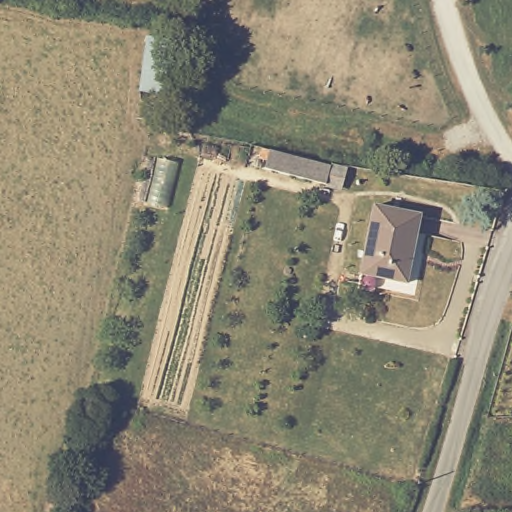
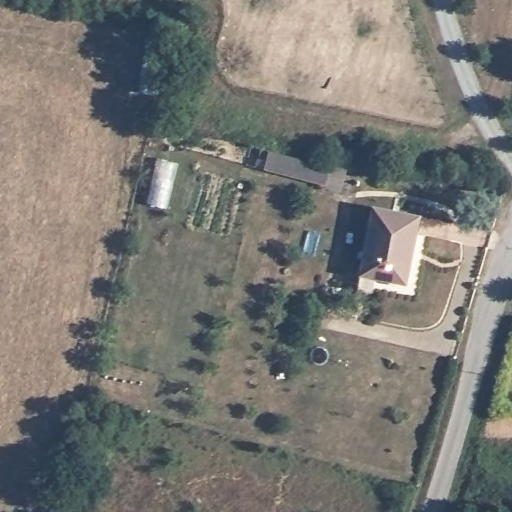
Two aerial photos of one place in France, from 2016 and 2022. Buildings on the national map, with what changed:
unchanged [(325,185),(264,170),(267,161),(258,159),(261,149),(330,167),(345,170),(340,189),(325,185)]
unchanged [(406,285),(360,275),(373,207),(420,216),(406,285)]

